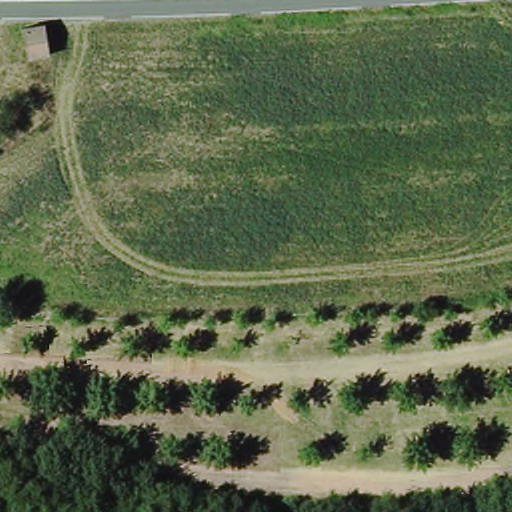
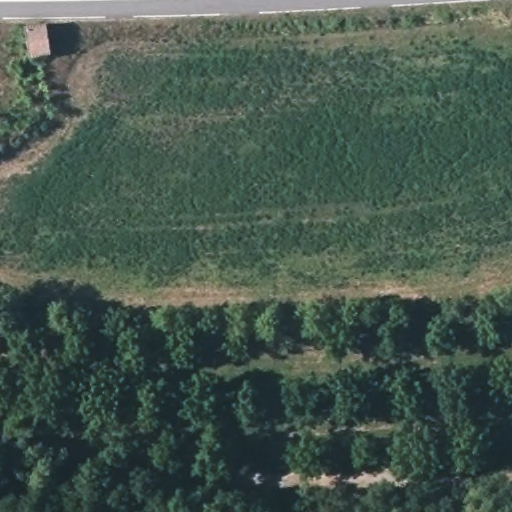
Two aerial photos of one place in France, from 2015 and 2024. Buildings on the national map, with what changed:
unchanged [(50,50),(31,56),(20,30),(45,25),(50,50)]

